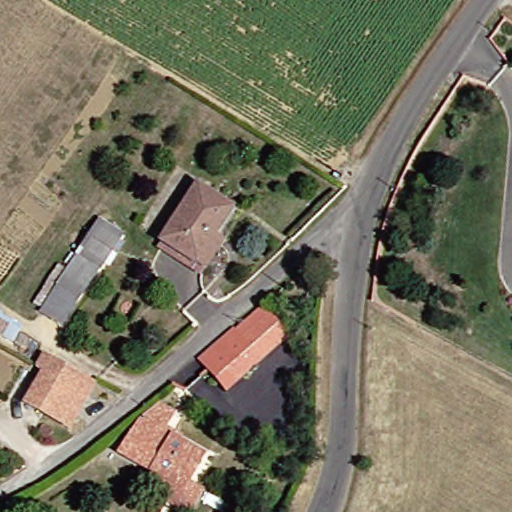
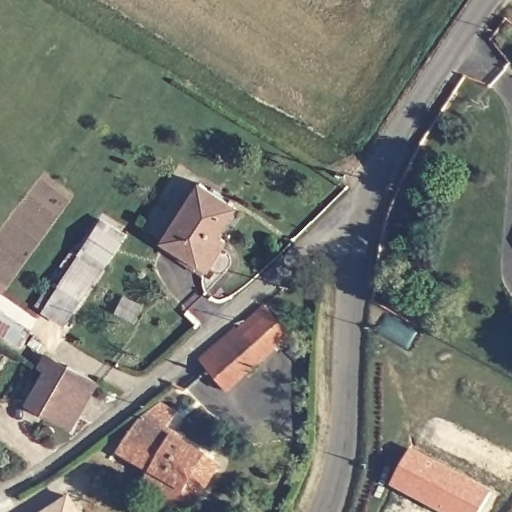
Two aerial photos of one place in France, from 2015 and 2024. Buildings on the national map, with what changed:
unchanged [(231,208),(211,238),(218,242),(201,267),(158,236),(198,186),(231,208)]
unchanged [(101,221),(104,223),(109,214),(128,227),(65,325),(44,312),(101,221)]
unchanged [(242,337),(269,313),(289,331),(230,390),(199,366),(237,332),(242,337)]
unchanged [(23,405),(37,376),(29,373),(31,368),(40,355),(92,384),(66,430),(23,405)]
unchanged [(193,484),(204,491),(191,511),(144,486),(152,471),(119,453),(139,416),(154,401),(181,415),(173,434),(185,441),(208,453),(193,484)]
new [(440,512),(391,486),(412,447),(494,490),(482,512),(440,512)]
new [(82,512),(44,512),(71,494),(82,512)]

